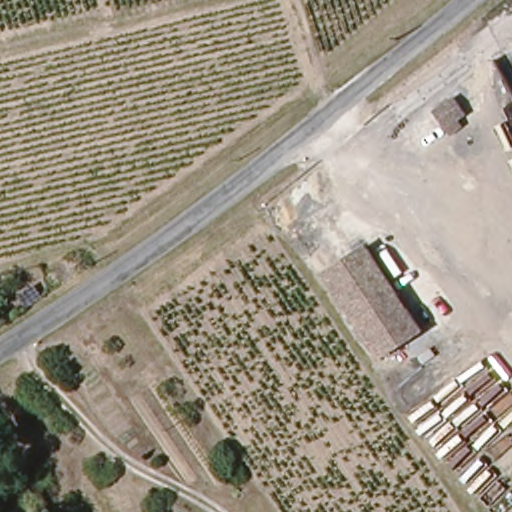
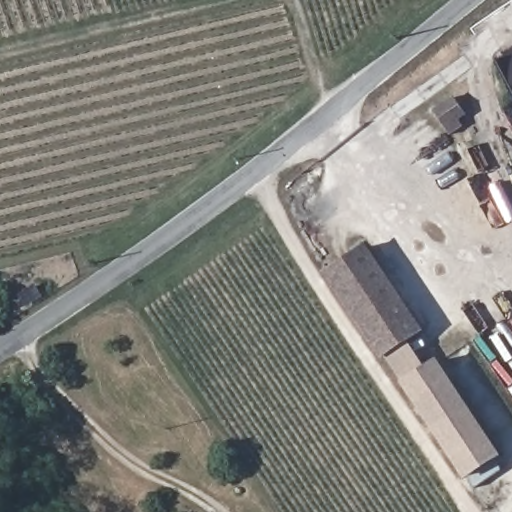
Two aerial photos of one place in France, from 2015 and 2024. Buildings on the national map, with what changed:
unchanged [(460,111),(448,96),(467,80),(479,95),(460,111)]
unchanged [(379,361),(326,275),(367,247),(423,332),(379,361)]
new [(465,480),(402,384),(438,360),(502,456),(465,480)]

